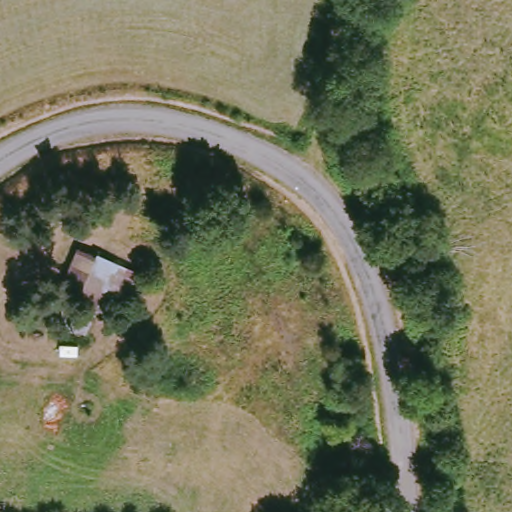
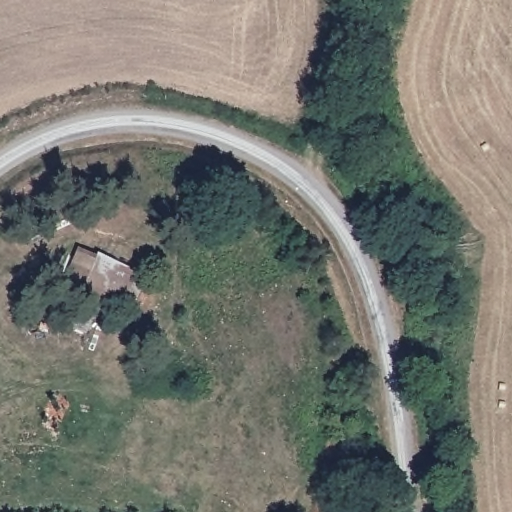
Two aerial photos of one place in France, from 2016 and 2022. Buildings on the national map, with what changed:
unchanged [(126,298),(106,289),(88,328),(67,314),(97,254),(133,276),(126,298)]

